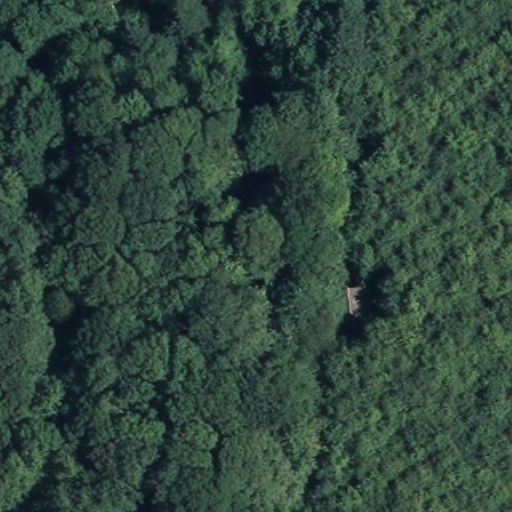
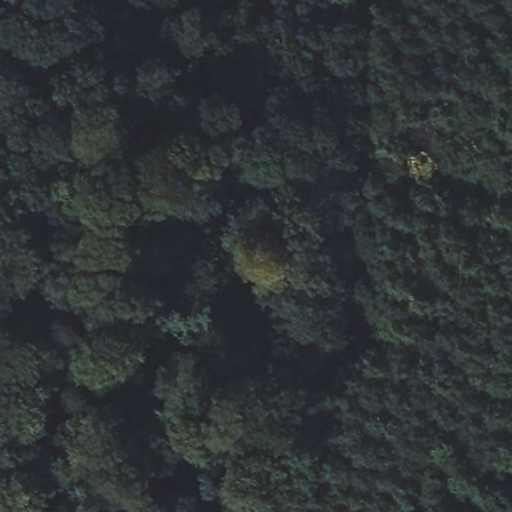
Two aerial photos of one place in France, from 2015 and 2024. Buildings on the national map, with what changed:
unchanged [(375,286),(384,329),(358,333),(353,294),(375,286)]

